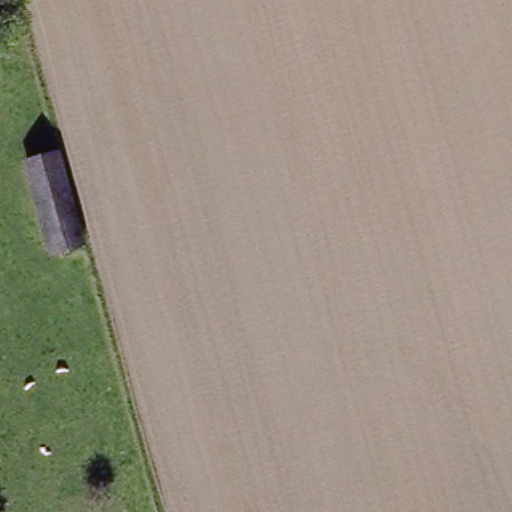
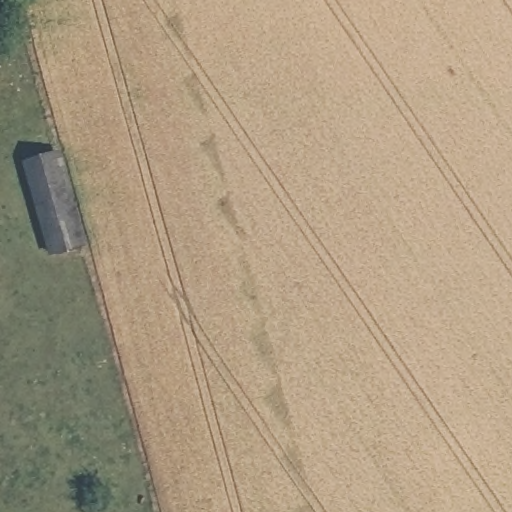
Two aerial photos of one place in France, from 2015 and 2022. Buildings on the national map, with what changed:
unchanged [(57,152),(80,247),(51,253),(28,160),(57,152)]

